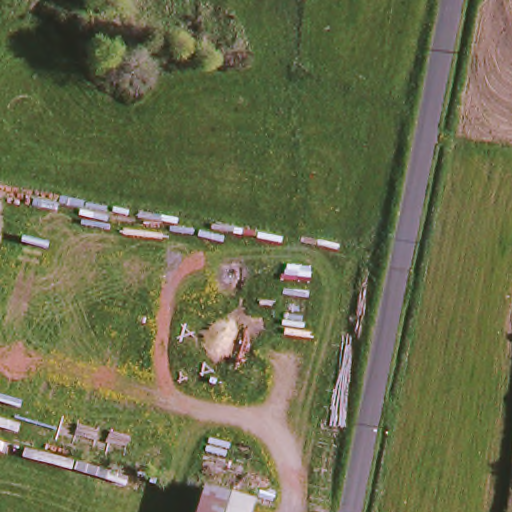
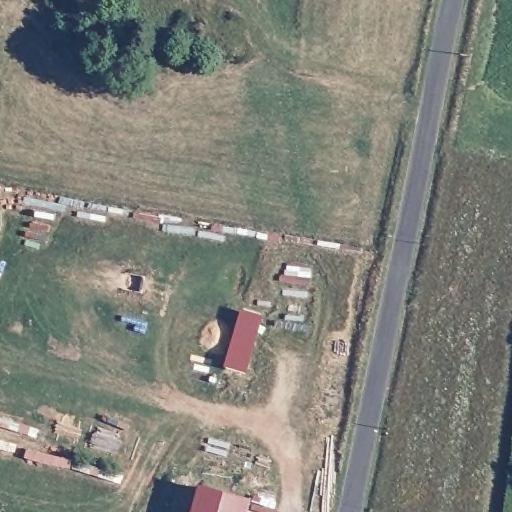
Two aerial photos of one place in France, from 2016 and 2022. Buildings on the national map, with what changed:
new [(225,365),(240,310),(261,315),(245,372),(225,365)]
unchanged [(191,512),(197,489),(247,504),(245,512),(191,512)]
unchanged [(509,512),(509,503),(512,503),(512,512),(509,512)]

